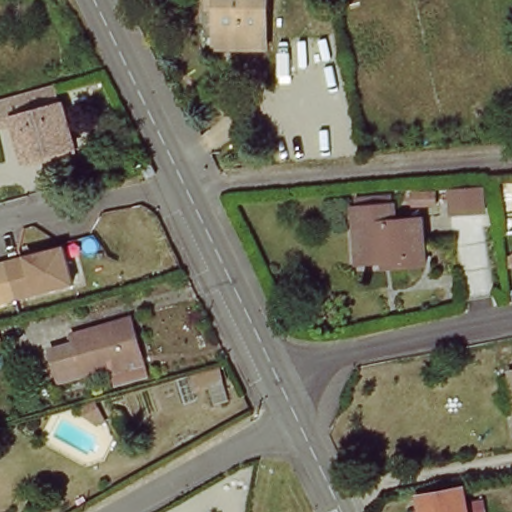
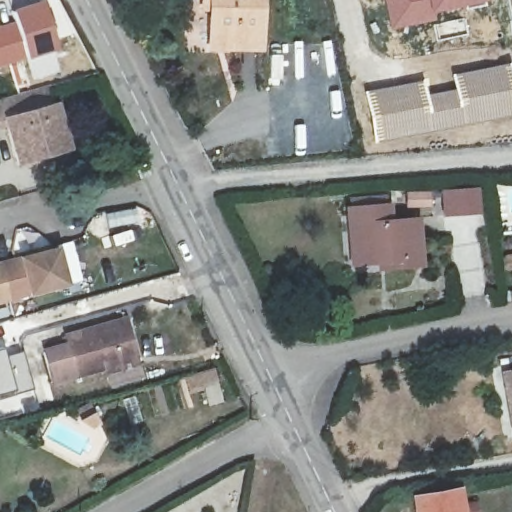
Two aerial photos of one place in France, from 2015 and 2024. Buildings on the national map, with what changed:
new [(16,19),(12,7),(42,0),(58,51),(26,57),(0,67),(0,23),(16,19)]
unchanged [(228,44),(229,33),(211,32),(211,0),(260,0),(260,44),(228,44)]
new [(432,11),(434,21),(389,31),(382,0),(483,0),(484,0),(432,11)]
new [(426,94),(453,88),(450,74),(509,62),(512,79),(512,115),(373,142),(364,91),(423,79),(426,94)]
unchanged [(6,133),(0,135),(0,114),(49,102),(55,122),(57,121),(70,166),(19,178),(6,133)]
unchanged [(443,216),(442,187),(478,186),(478,214),(443,216)]
unchanged [(385,208),(387,221),(413,221),(415,267),(373,268),(372,263),(357,264),(356,232),(349,230),(347,211),(385,208)]
unchanged [(54,253),(62,289),(4,301),(0,302),(0,264),(54,253)]
unchanged [(108,397),(101,372),(69,380),(58,336),(122,321),(133,364),(139,389),(108,397)]
new [(2,348),(4,355),(24,350),(34,389),(0,400),(0,349),(2,348)]
unchanged [(512,374),(512,389),(510,374),(512,374)]
unchanged [(467,512),(423,512),(420,498),(463,490),(467,512)]

